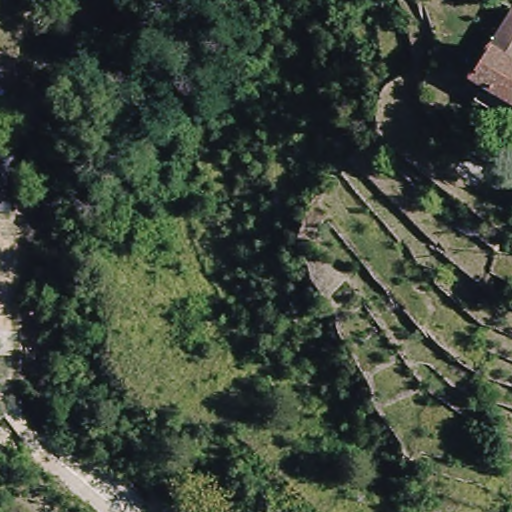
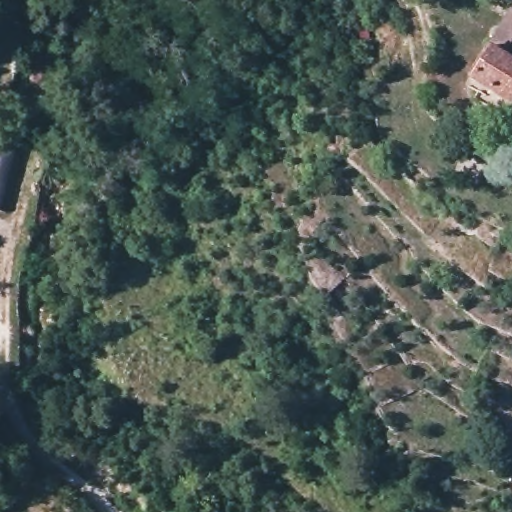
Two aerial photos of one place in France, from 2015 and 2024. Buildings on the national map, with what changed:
unchanged [(470,78),(512,6),(512,105),(470,78)]
unchanged [(0,120),(28,125),(7,212),(0,211),(0,120)]

